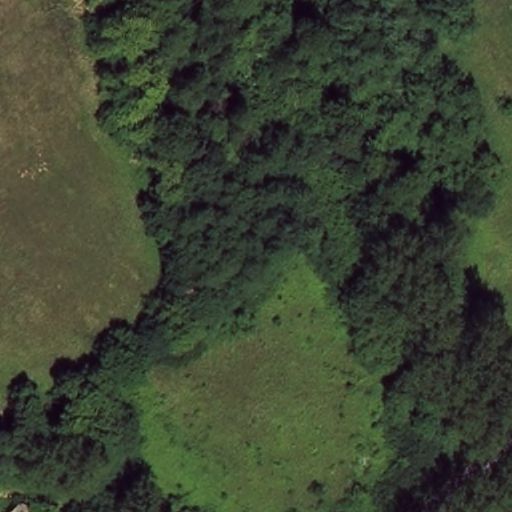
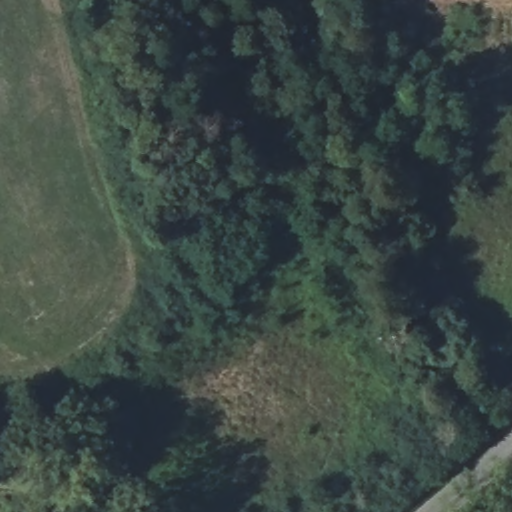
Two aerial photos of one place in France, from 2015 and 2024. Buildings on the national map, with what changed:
unchanged [(35,512),(19,512),(26,506),(35,512)]

